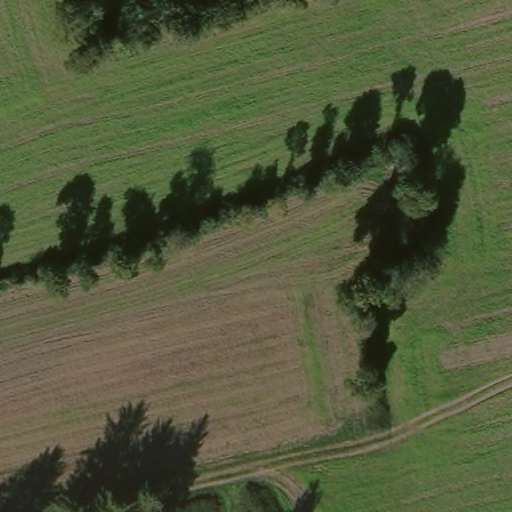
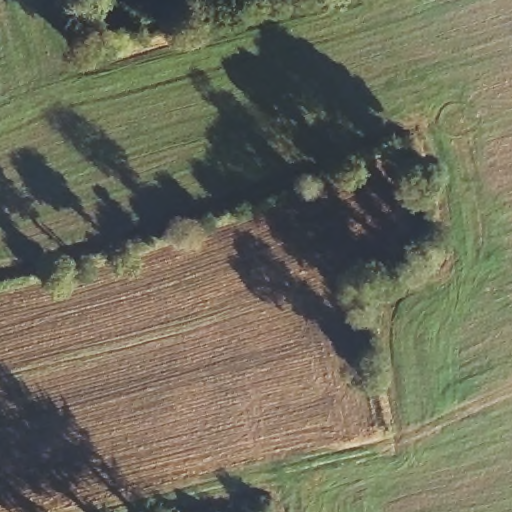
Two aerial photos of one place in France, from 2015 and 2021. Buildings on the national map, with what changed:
[]

